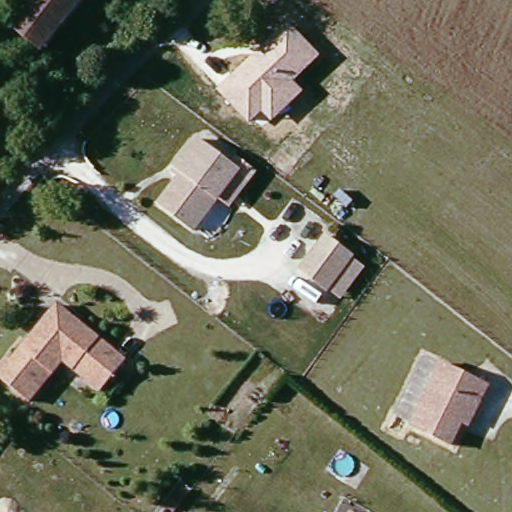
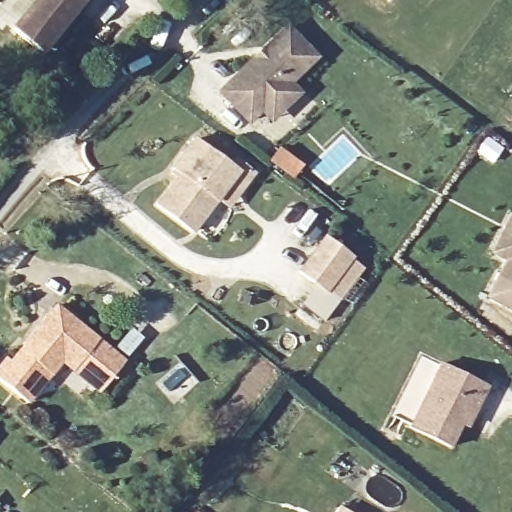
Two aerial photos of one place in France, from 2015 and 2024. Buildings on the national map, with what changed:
unchanged [(10,27),(31,0),(81,0),(40,51),(10,27)]
unchanged [(288,24),(321,56),(295,82),(305,93),(273,123),(262,113),(251,124),(218,90),(288,24)]
unchanged [(168,172),(195,135),(253,178),(229,210),(217,203),(194,233),(155,206),(176,179),(168,172)]
new [(502,260),(489,254),(510,213),(512,214),(512,311),(485,298),(502,260)]
unchanged [(297,270),(325,234),(355,256),(352,260),(364,268),(343,296),(331,287),(328,292),(297,270)]
unchanged [(0,375),(0,369),(11,356),(15,360),(54,312),(77,331),(84,323),(129,359),(104,389),(92,379),(104,363),(90,352),(77,367),(62,355),(51,368),(55,372),(31,401),(0,375)]
unchanged [(472,425),(466,423),(453,447),(408,425),(443,362),(490,389),(472,425)]

